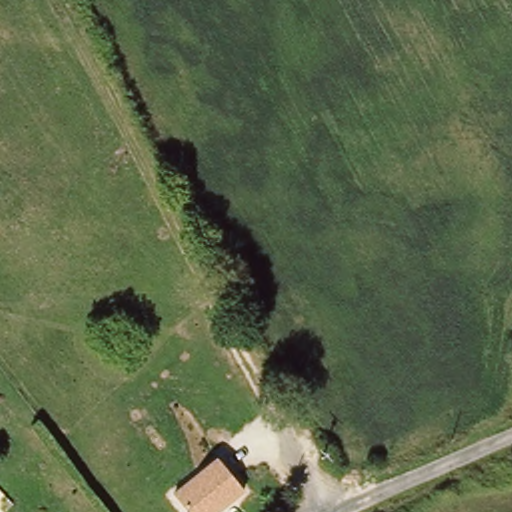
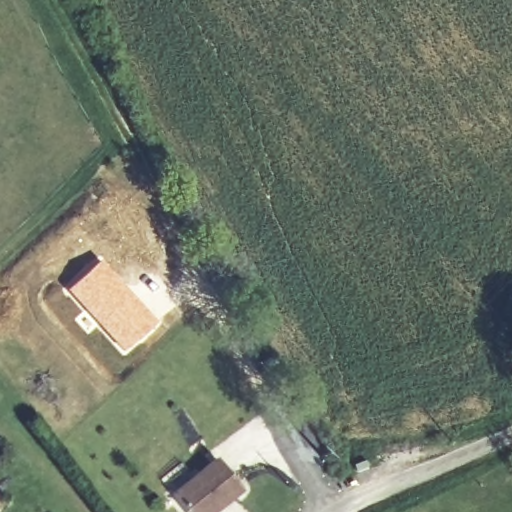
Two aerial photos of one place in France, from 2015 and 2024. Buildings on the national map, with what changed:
new [(100,257),(157,321),(124,351),(66,288),(100,257)]
unchanged [(218,512),(188,512),(173,493),(217,456),(244,490),(218,512)]

